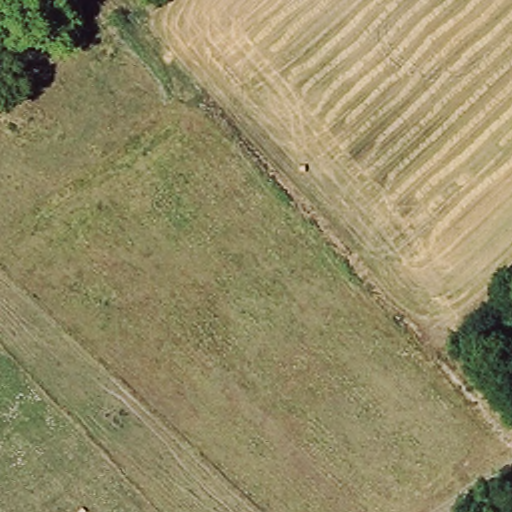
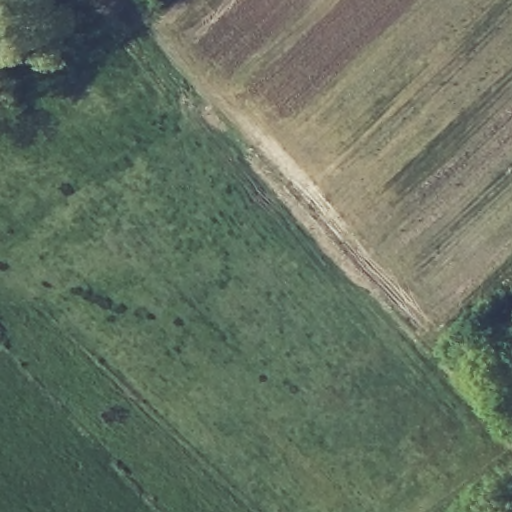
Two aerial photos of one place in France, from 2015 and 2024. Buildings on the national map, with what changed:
[]

